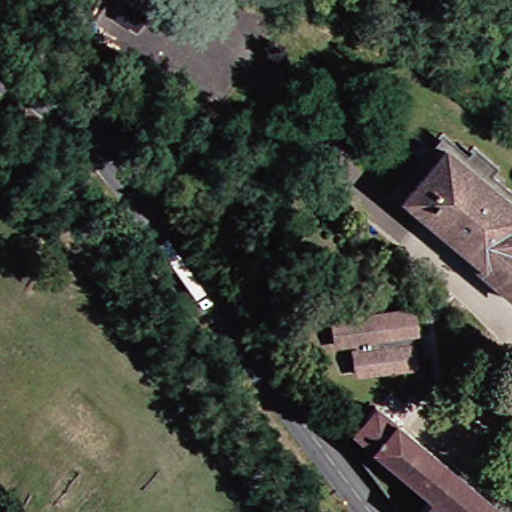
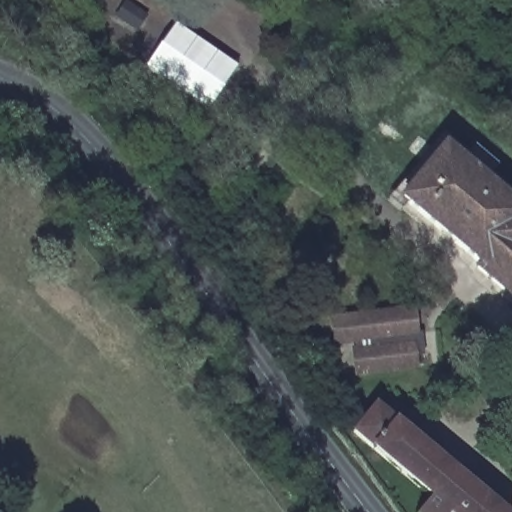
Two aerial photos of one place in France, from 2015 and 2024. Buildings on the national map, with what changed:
new [(149,16),(137,33),(116,19),(127,1),(149,16)]
new [(207,112),(144,68),(175,25),(237,67),(207,112)]
unchanged [(485,263),(407,198),(448,148),(512,201),(512,292),(482,267),(485,263)]
unchanged [(397,341),(397,350),(400,372),(344,377),(342,354),(345,354),(343,345),(324,347),(322,322),(403,315),(406,340),(397,341)]
unchanged [(435,497),(356,432),(379,404),(509,512),(422,512),(435,497)]

